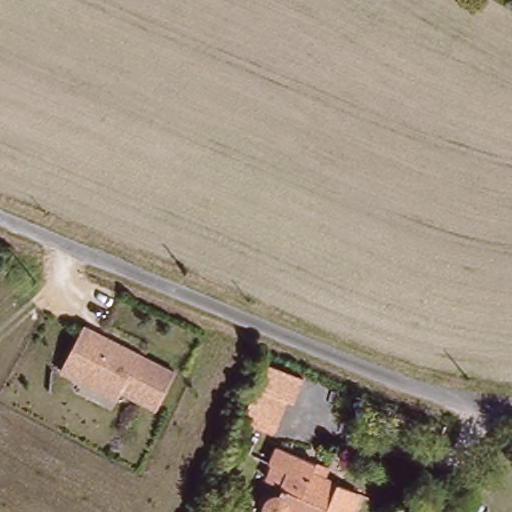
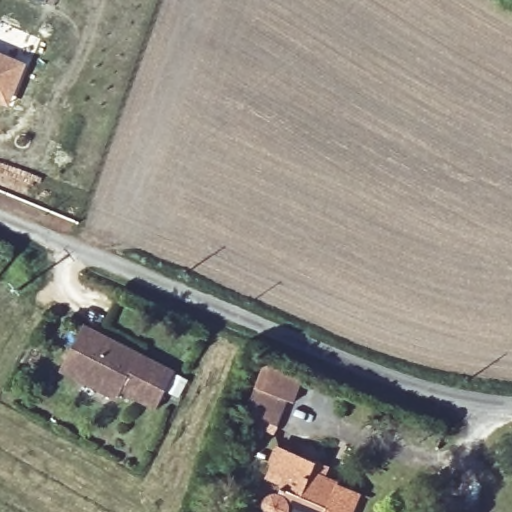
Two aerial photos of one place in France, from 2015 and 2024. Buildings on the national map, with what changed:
new [(27,64),(10,106),(0,102),(0,52),(27,64)]
unchanged [(160,407),(124,387),(119,395),(65,366),(89,322),(122,340),(141,350),(179,370),(160,407)]
unchanged [(291,406),(286,404),(275,428),(244,413),(265,367),(302,385),(291,406)]
unchanged [(268,500),(276,498),(284,501),(295,479),(276,470),(283,454),(323,472),(319,481),(362,500),(356,512),(262,512),(265,505),(268,500)]

